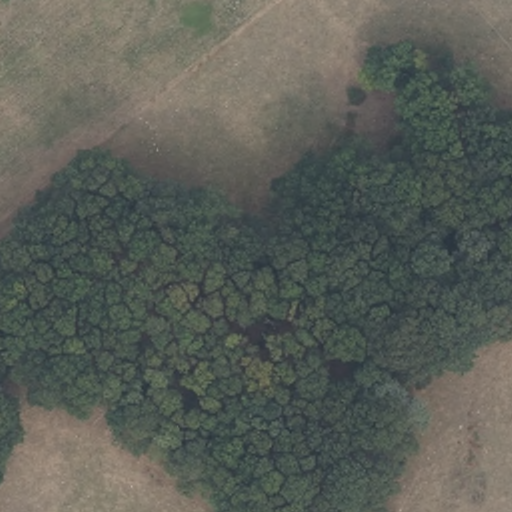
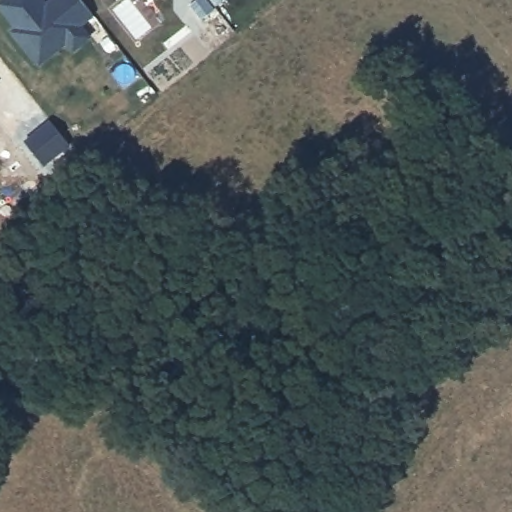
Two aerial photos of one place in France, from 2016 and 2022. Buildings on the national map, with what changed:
new [(92,36),(72,52),(66,45),(39,66),(11,32),(16,28),(0,8),(0,0),(46,0),(82,0),(95,15),(82,25),(92,36)]

